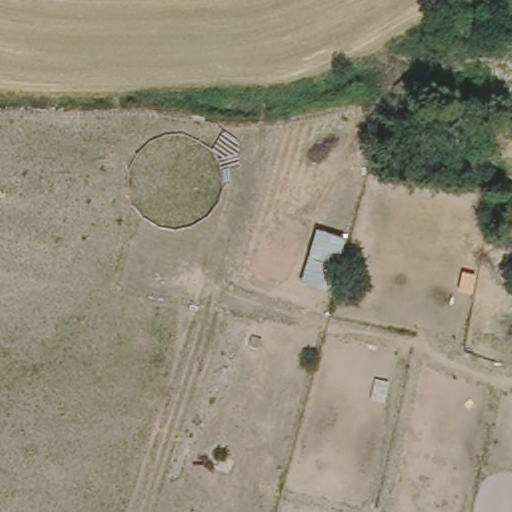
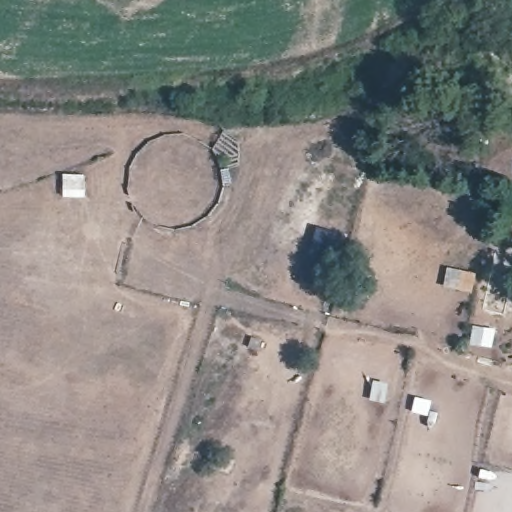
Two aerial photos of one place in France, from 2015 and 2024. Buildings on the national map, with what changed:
unchanged [(263,341),(260,350),(250,345),(253,337),(263,341)]

